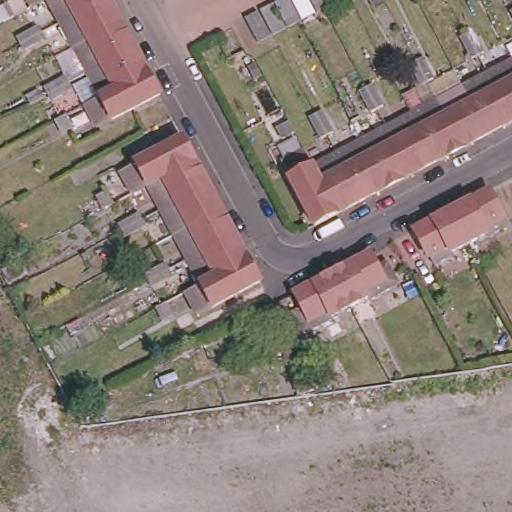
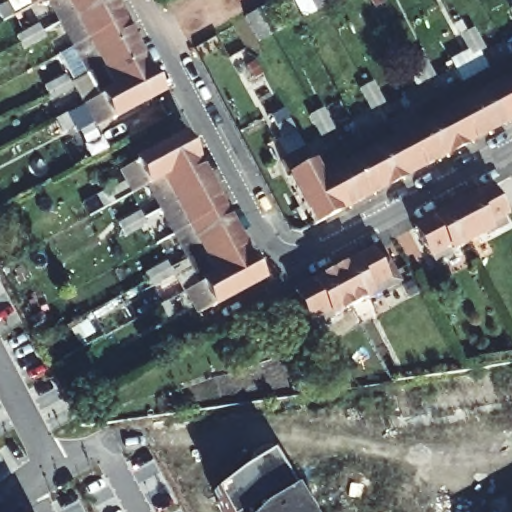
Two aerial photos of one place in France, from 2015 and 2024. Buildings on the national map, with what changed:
unchanged [(27,0),(33,0),(28,3),(27,0)]
unchanged [(91,0),(57,19),(46,0),(91,0)]
unchanged [(91,0),(110,0),(119,16),(70,43),(57,19),(91,0)]
unchanged [(4,23),(0,16),(0,12),(10,8),(15,17),(4,23)]
unchanged [(70,43),(119,16),(132,42),(83,68),(70,43)]
unchanged [(47,40),(25,51),(22,45),(19,40),(40,28),(44,33),(47,40)]
unchanged [(477,61),(467,41),(472,38),(479,34),(490,55),(484,58),(477,61)]
unchanged [(83,68),(132,42),(143,63),(145,66),(96,92),(83,68)]
unchanged [(512,61),(512,107),(493,71),(512,61)]
unchanged [(426,63),(437,84),(431,86),(425,90),(414,69),(420,66),(426,63)]
unchanged [(157,89),(92,123),(80,101),(96,92),(145,66),(157,89)]
unchanged [(466,86),(493,71),(512,107),(512,115),(488,128),(466,86)]
unchanged [(52,101),(48,94),(45,89),(67,78),(70,83),(72,89),(52,101)]
unchanged [(463,141),(441,100),(466,86),(488,128),(463,141)]
unchanged [(365,95),(372,91),(377,89),(389,110),(382,112),(376,116),(365,95)]
unchanged [(455,146),(437,155),(416,113),(441,100),(463,141),(455,146)]
unchanged [(414,167),(392,125),(416,113),(437,155),(414,167)]
unchanged [(64,134),(57,121),(68,115),(75,129),(64,134)]
unchanged [(315,121),(322,118),(327,115),(339,136),(333,140),(327,143),(315,121)]
unchanged [(280,123),(290,117),(297,129),(285,134),(280,123)]
unchanged [(393,179),(388,181),(367,139),(392,125),(414,167),(393,179)]
unchanged [(132,188),(121,166),(137,157),(139,155),(184,131),(197,154),(148,179),(132,188)]
unchanged [(364,194),(346,159),(342,151),(367,139),(388,181),(364,194)]
unchanged [(332,211),(315,220),(291,172),(294,170),(285,154),(307,143),(319,164),(340,206),(332,211)]
unchanged [(340,206),(319,164),(342,151),(346,159),(364,194),(340,206)]
unchanged [(148,179),(197,154),(210,179),(161,205),(148,179)]
unchanged [(161,205),(210,179),(222,203),(174,229),(161,205)]
unchanged [(447,204),(450,202),(485,183),(500,212),(499,215),(504,224),(485,233),(483,229),(466,238),(447,204)]
unchanged [(102,208),(97,197),(108,191),(114,203),(102,208)]
unchanged [(174,229),(222,203),(232,221),(236,228),(187,254),(174,229)]
unchanged [(451,245),(452,250),(433,261),(429,252),(426,252),(410,224),(447,204),(466,238),(451,245)]
unchanged [(119,226),(140,215),(142,219),(146,226),(125,237),(122,231),(119,226)]
unchanged [(187,254),(236,228),(249,253),(200,279),(187,254)]
unchanged [(329,262),(365,242),(374,260),(385,254),(397,276),(367,291),(367,287),(347,297),(329,262)]
unchanged [(250,254),(262,277),(197,310),(185,287),(200,279),(249,253),(250,254)]
unchanged [(330,307),(332,311),(302,327),(290,304),(300,299),(291,282),(327,263),(329,262),(347,297),(330,307)]
unchanged [(147,276),(167,265),(169,269),(172,277),(152,288),(149,280),(147,276)]
unchanged [(162,318),(156,307),(167,302),(172,312),(162,318)]
new [(217,503),(247,486),(239,472),(270,454),(305,512),(222,512),(217,503)]

